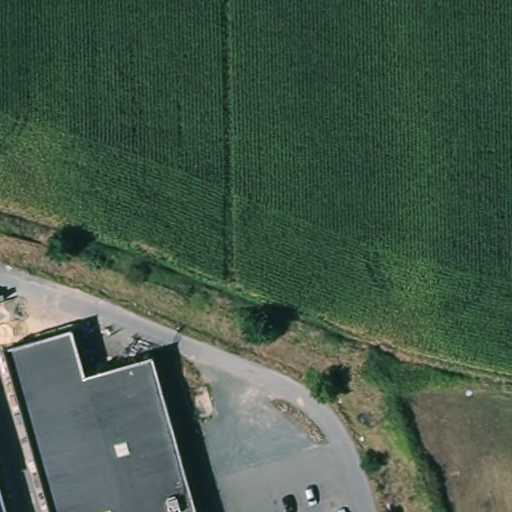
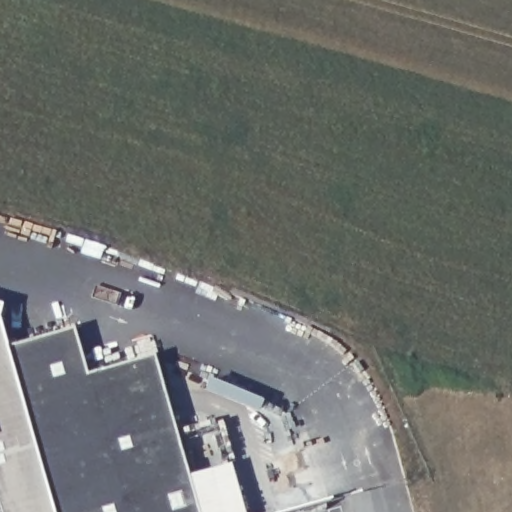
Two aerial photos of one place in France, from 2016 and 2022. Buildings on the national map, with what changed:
new [(5,349),(52,512),(0,512),(0,329),(5,349)]
unchanged [(5,349),(13,347),(73,329),(86,376),(149,358),(153,357),(155,361),(178,444),(179,444),(198,512),(52,512),(5,349)]
new [(243,512),(198,512),(187,476),(229,464),(243,512)]

